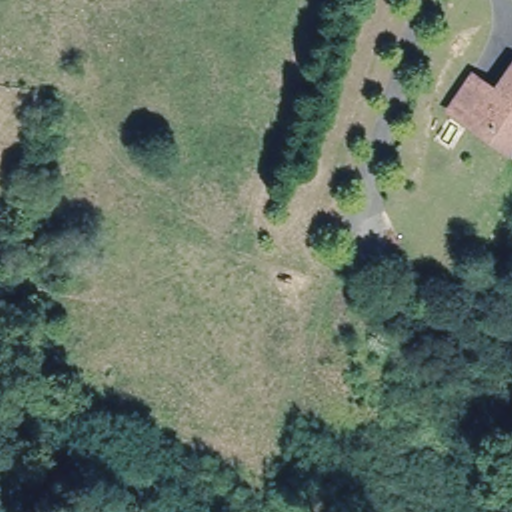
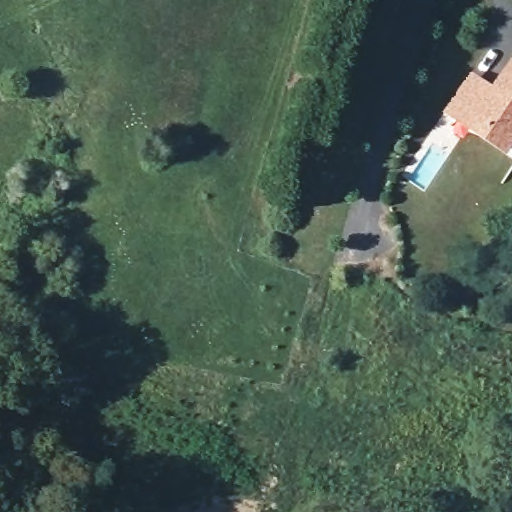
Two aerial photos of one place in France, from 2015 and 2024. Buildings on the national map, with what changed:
unchanged [(495,115),(478,106),(494,81),(499,84),(512,62),(512,142),(488,126),(495,115)]
unchanged [(478,106),(495,115),(488,126),(453,105),(475,71),(494,81),(478,106)]

